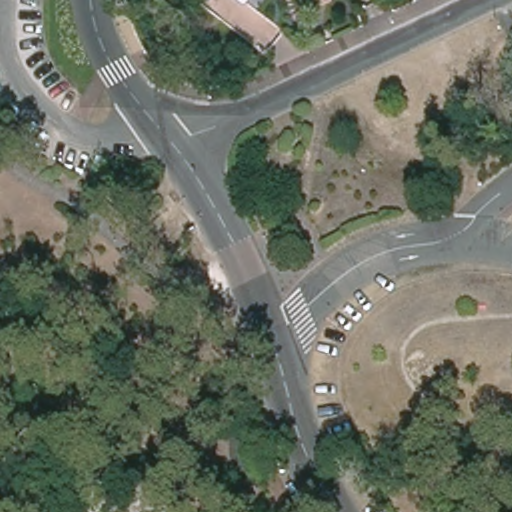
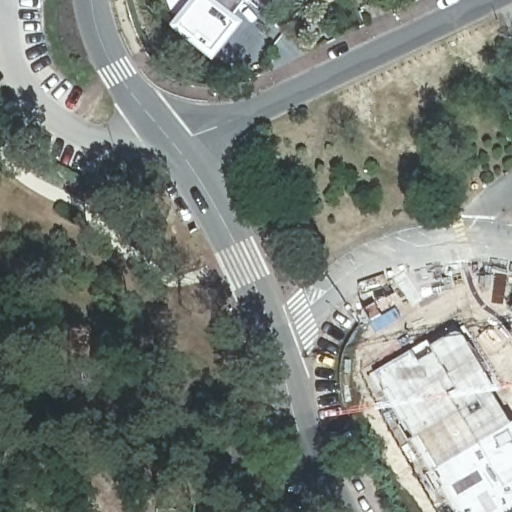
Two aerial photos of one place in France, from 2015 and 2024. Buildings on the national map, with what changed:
new [(235,29),(240,33),(215,62),(181,32),(192,20),(186,14),(198,0),(262,0),(235,29)]
new [(275,0),(283,0),(280,4),(275,0)]
new [(435,490),(398,423),(401,421),(382,390),(385,389),(374,373),(426,340),(430,346),(449,334),(454,332),(457,332),(460,335),(495,390),(490,392),(511,423),(512,422),(512,512),(454,512),(440,488),(435,490)]

